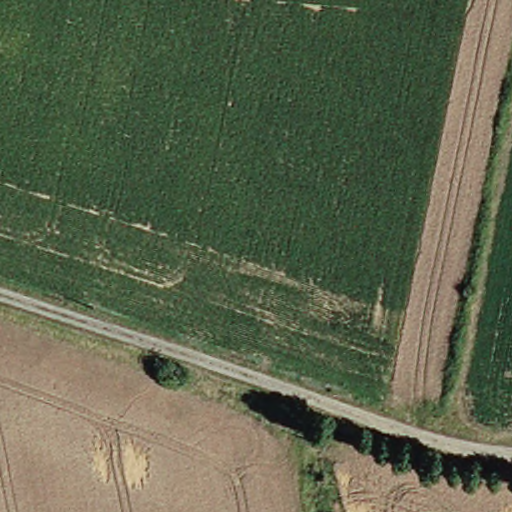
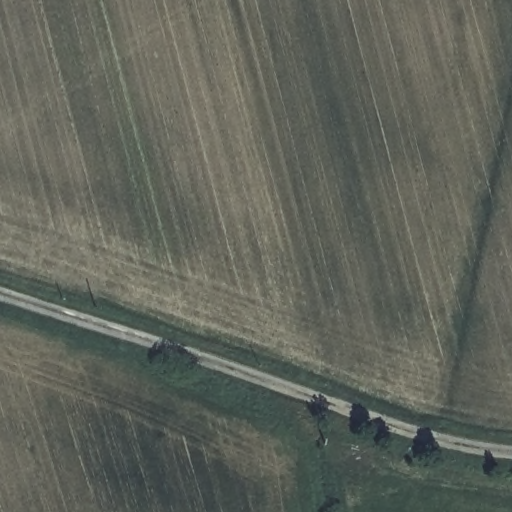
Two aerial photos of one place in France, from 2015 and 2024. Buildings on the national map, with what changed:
[]

